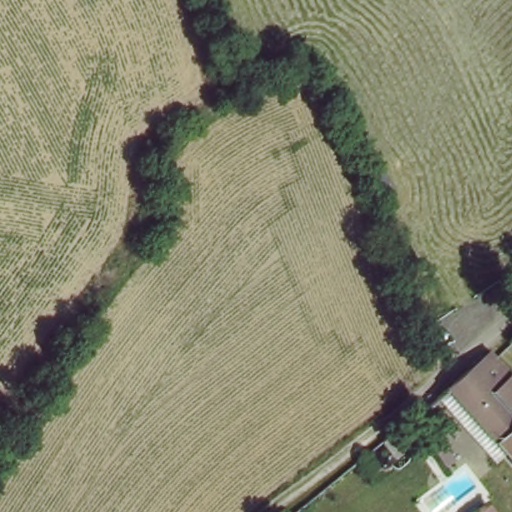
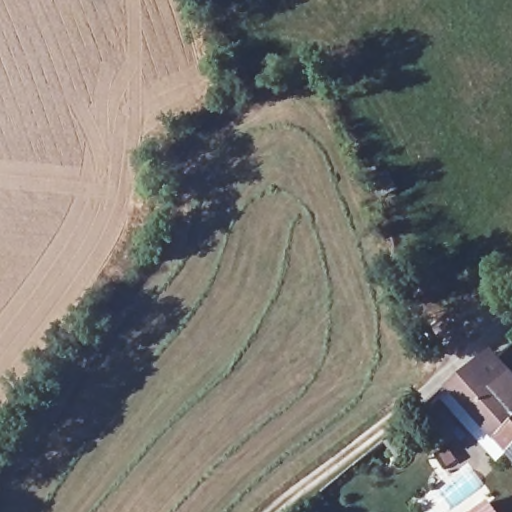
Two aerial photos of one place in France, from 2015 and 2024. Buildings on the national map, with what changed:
unchanged [(487,361),(512,388),(512,466),(449,396),(487,361)]
unchanged [(493,512),(472,512),(487,502),(493,512)]

